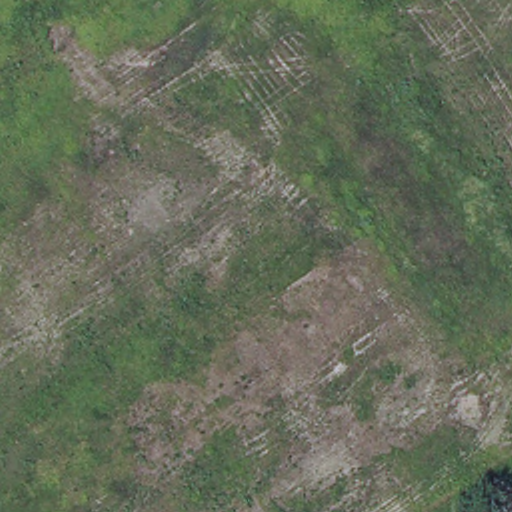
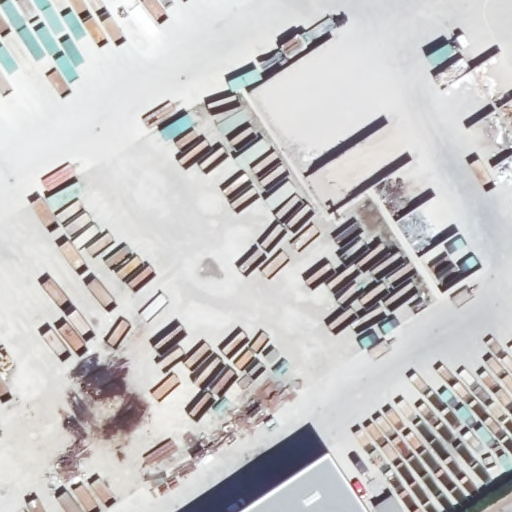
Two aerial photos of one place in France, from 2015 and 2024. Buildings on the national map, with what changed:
new [(367,512),(236,512),(327,451),(367,512)]
new [(392,492),(406,512),(375,512),(372,507),(392,492)]

